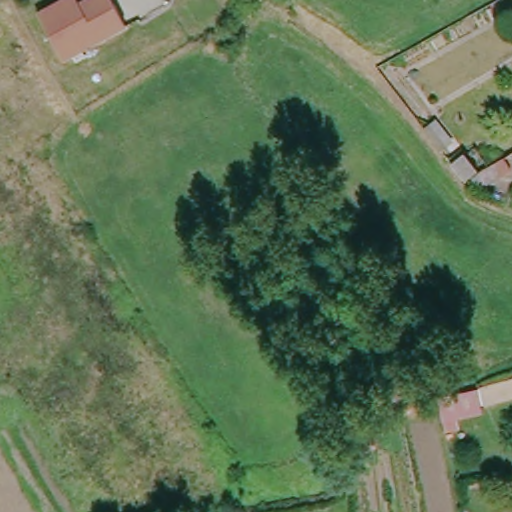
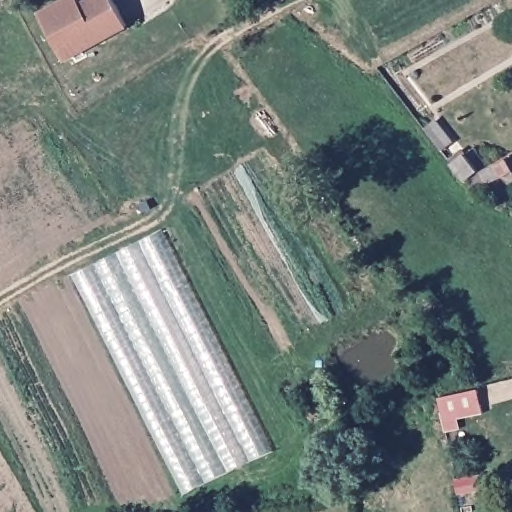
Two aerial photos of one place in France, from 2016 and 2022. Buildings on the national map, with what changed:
unchanged [(60,54),(39,15),(67,0),(79,0),(81,5),(89,0),(113,0),(128,26),(93,46),(65,62),(60,54)]
unchanged [(426,137),(436,129),(454,150),(444,158),(426,137)]
unchanged [(456,171),(467,161),(479,175),(468,186),(456,171)]
new [(183,495),(69,274),(161,229),(273,451),(183,495)]
unchanged [(453,420),(454,430),(442,432),(436,405),(435,400),(457,397),(476,392),(478,410),(479,415),(453,420)]

